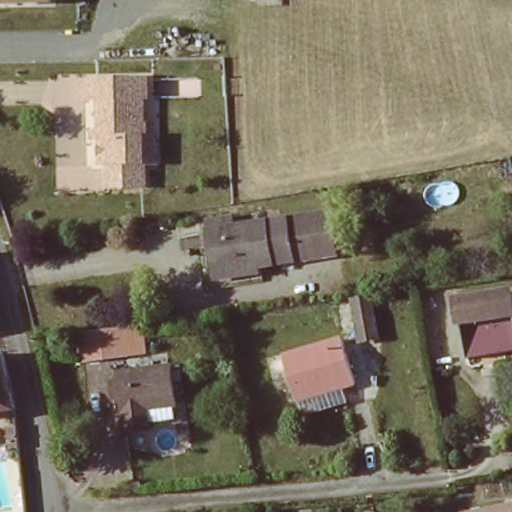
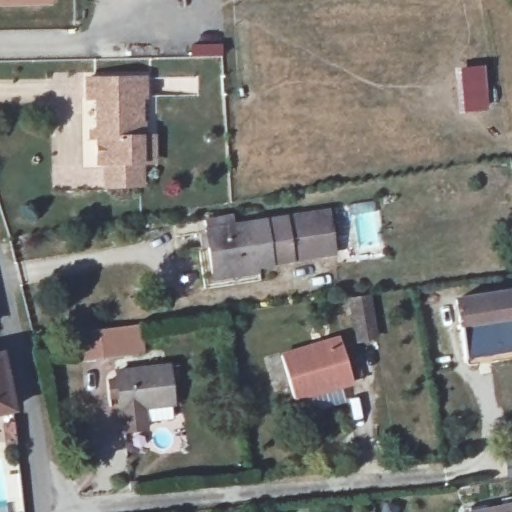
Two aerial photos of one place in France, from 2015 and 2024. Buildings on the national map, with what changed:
unchanged [(0,2),(0,0),(40,0),(40,1),(0,2)]
new [(455,67),(484,64),(489,110),(459,112),(455,67)]
unchanged [(154,166),(146,167),(146,193),(111,193),(106,166),(93,165),(89,79),(149,78),(154,166)]
unchanged [(332,259),(209,273),(204,232),(328,215),(332,259)]
unchanged [(464,351),(455,302),(511,291),(512,298),(512,342),(464,351)]
unchanged [(374,338),(352,341),(347,299),(369,297),(374,338)]
unchanged [(75,332),(144,327),(147,353),(78,359),(75,332)]
unchanged [(346,382),(290,401),(275,361),(333,343),(346,382)]
unchanged [(15,411),(0,414),(0,351),(1,351),(15,411)]
unchanged [(168,404),(122,411),(115,374),(165,367),(168,404)]
unchanged [(458,512),(458,510),(512,501),(512,512),(458,512)]

